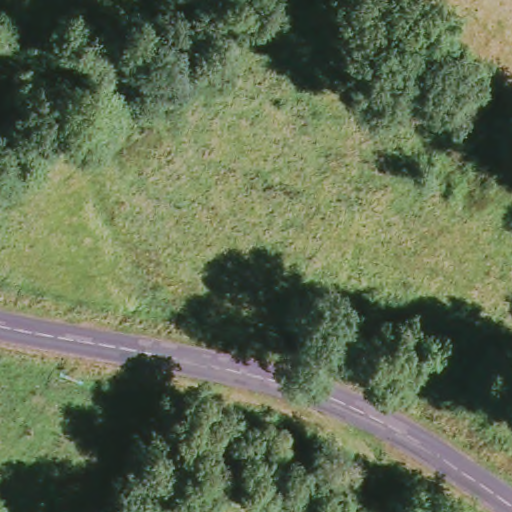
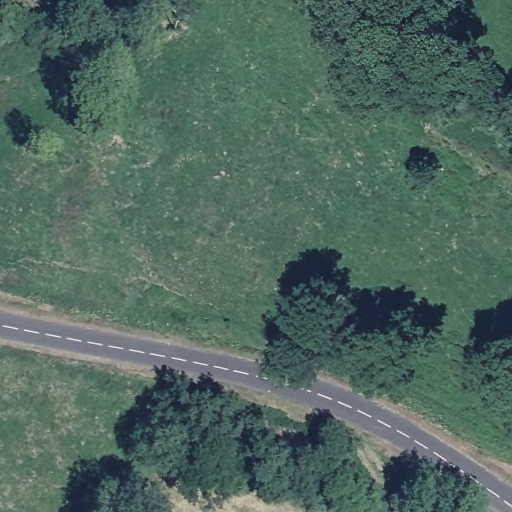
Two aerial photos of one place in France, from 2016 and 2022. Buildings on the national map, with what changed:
[]

